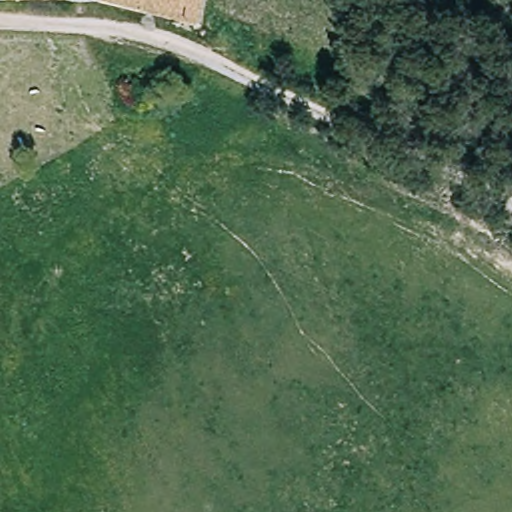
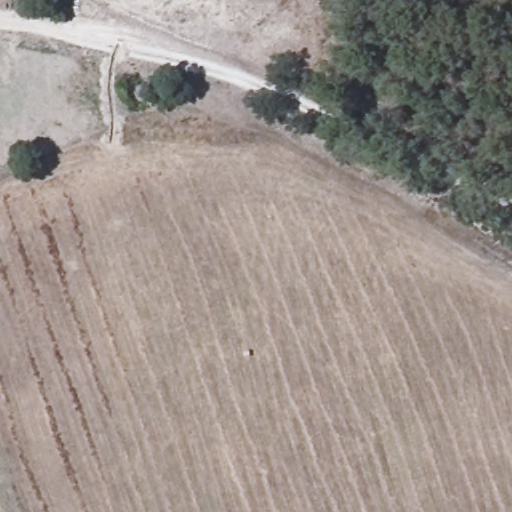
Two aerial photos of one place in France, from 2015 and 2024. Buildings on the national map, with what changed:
unchanged [(0,1),(0,0),(51,0),(52,6),(0,1)]
demolished [(95,1),(95,0),(201,0),(192,28),(95,1)]

